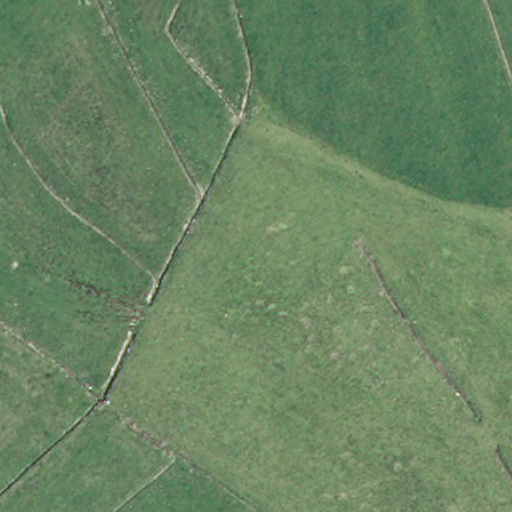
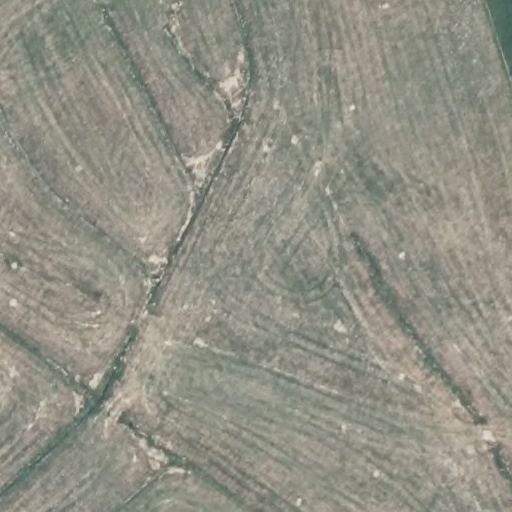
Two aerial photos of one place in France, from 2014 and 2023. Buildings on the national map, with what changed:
[]

